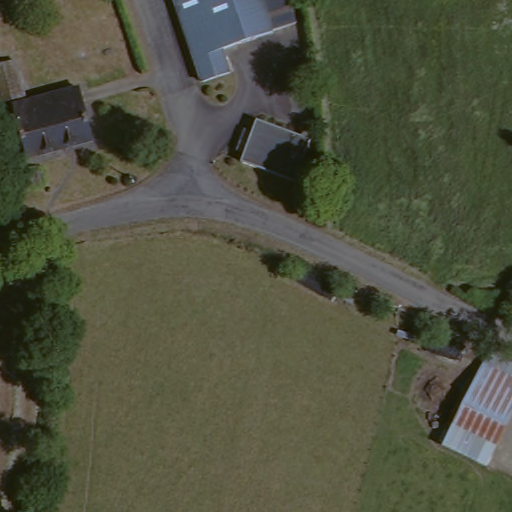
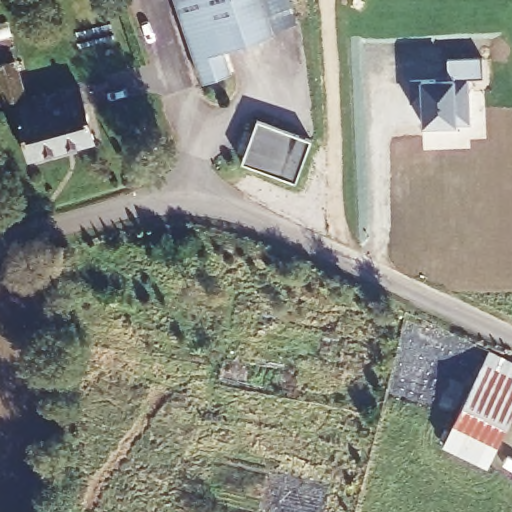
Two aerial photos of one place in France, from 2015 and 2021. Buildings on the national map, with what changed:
unchanged [(268,32),(217,49),(225,72),(198,82),(170,0),(257,0),(267,30),(268,32)]
unchanged [(283,0),(291,22),(267,30),(257,0),(283,0)]
unchanged [(29,92),(6,98),(0,78),(0,60),(19,54),(29,92)]
new [(449,79),(448,60),(484,59),(484,79),(468,80),(470,124),(423,126),(423,101),(412,101),(411,81),(449,79)]
unchanged [(19,100),(84,82),(99,135),(34,153),(19,100)]
unchanged [(313,132),(301,176),(245,161),(256,118),(313,132)]
unchanged [(444,443),(456,418),(489,351),(512,362),(512,421),(501,442),(490,466),(444,443)]

